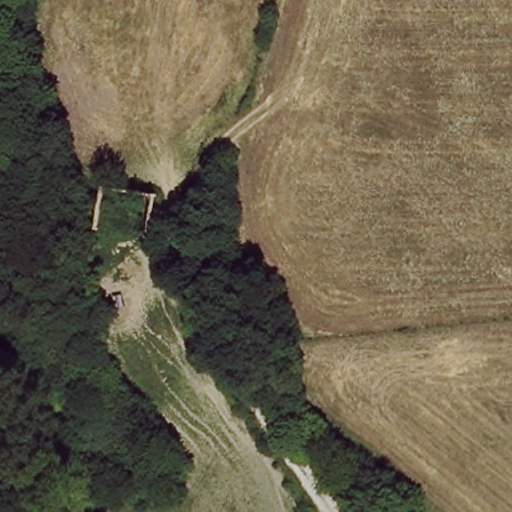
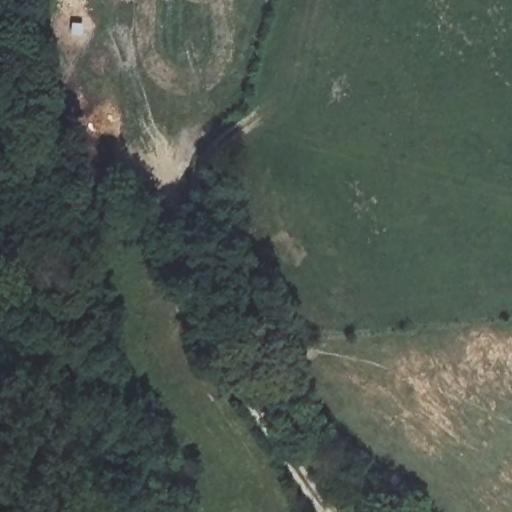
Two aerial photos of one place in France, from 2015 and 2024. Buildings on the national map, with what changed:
unchanged [(159,186),(150,237),(97,231),(103,181),(159,186)]

